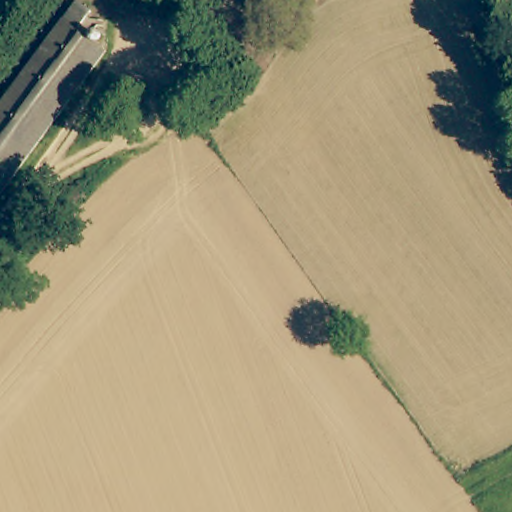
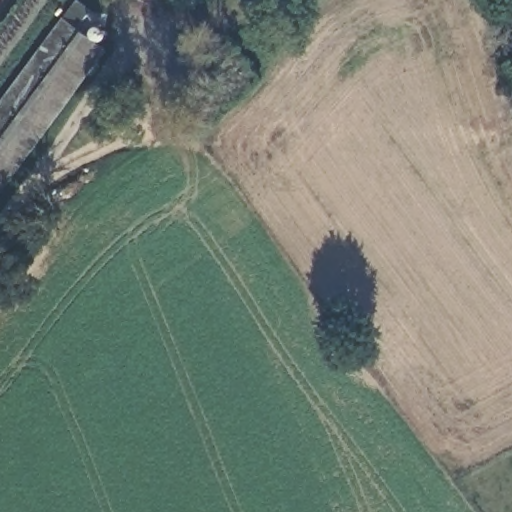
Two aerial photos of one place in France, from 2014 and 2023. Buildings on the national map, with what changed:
unchanged [(106,50),(0,189),(0,103),(64,18),(106,50)]

